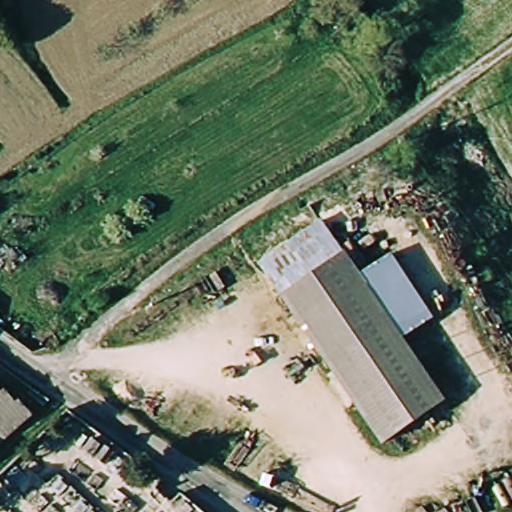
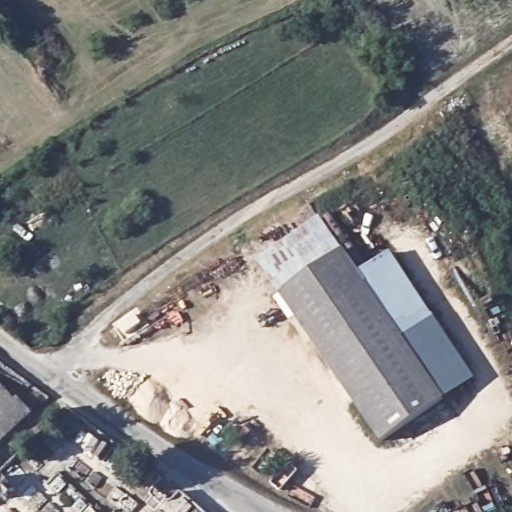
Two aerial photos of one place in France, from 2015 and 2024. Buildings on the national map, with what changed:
unchanged [(283,290),(280,294),(257,261),(320,219),(348,251),(283,290)]
unchanged [(348,251),(444,399),(380,441),(283,290),(348,251)]
unchanged [(391,254),(433,318),(403,336),(362,273),(391,254)]
new [(477,380),(444,399),(403,336),(433,318),(477,380)]
unchanged [(0,441),(0,398),(27,419),(0,441)]

